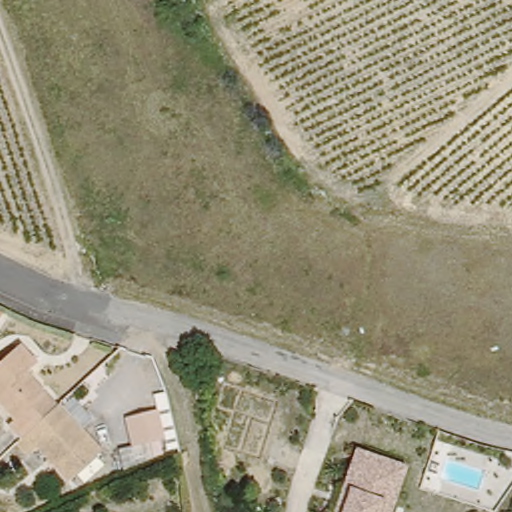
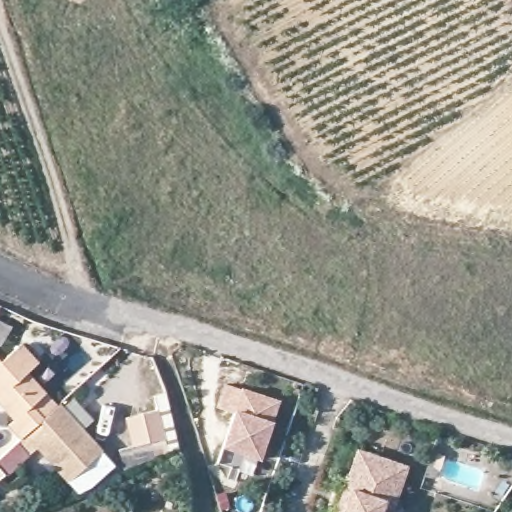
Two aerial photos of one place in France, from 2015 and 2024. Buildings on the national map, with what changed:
unchanged [(18,348),(36,365),(26,373),(59,407),(22,442),(7,426),(14,418),(0,405),(0,365),(18,348)]
new [(225,380),(278,397),(259,455),(223,442),(234,411),(217,405),(225,380)]
unchanged [(93,420),(82,430),(60,406),(71,396),(93,420)]
unchanged [(33,453),(30,457),(18,445),(22,442),(59,407),(82,430),(102,452),(70,482),(56,467),(51,472),(33,453)]
unchanged [(126,416),(158,408),(166,440),(134,447),(127,418),(126,416)]
unchanged [(354,492),(347,489),(360,451),(391,461),(410,467),(394,512),(357,512),(360,502),(353,501),(349,512),(347,512),(354,492)]

